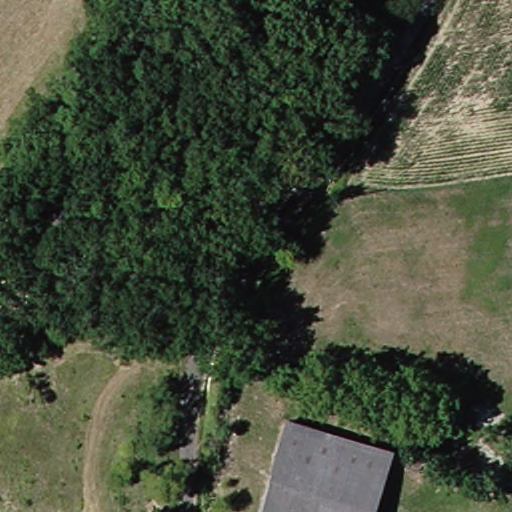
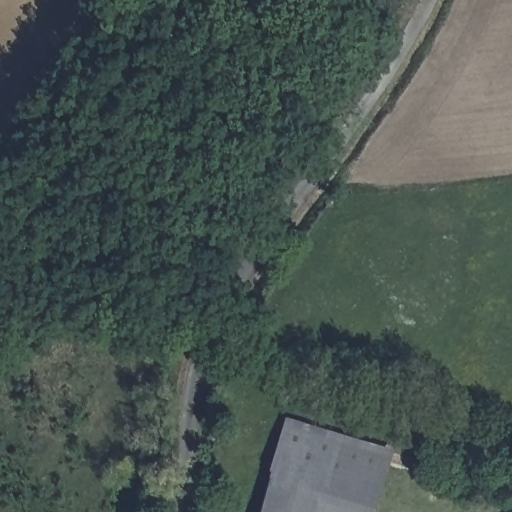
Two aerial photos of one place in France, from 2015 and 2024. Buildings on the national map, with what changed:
unchanged [(404,451),(385,512),(271,512),(300,418),(404,451)]

